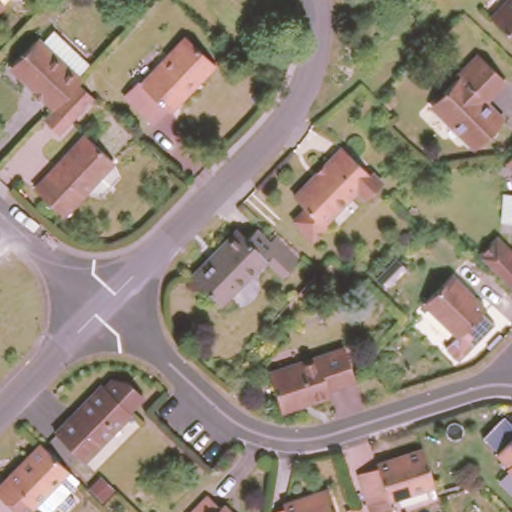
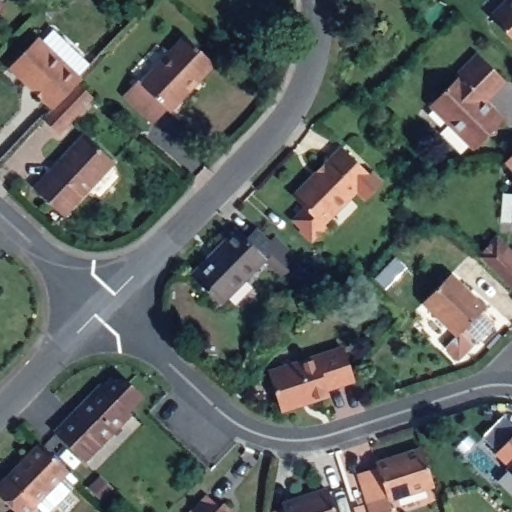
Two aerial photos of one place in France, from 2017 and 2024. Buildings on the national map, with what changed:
unchanged [(7,3),(0,9),(0,0),(4,0),(7,3)]
unchanged [(502,0),(512,0),(512,38),(488,15),(502,0)]
unchanged [(53,108),(9,66),(35,39),(40,43),(48,34),(46,32),(50,28),(53,28),(58,34),(57,36),(77,56),(87,66),(75,77),(79,81),(77,83),(53,108)]
unchanged [(136,75),(140,80),(186,31),(212,57),(166,106),(165,104),(152,118),(123,90),(136,75)]
unchanged [(445,93),(443,91),(457,77),(455,75),(476,53),(502,79),(480,103),(500,121),(475,147),(450,122),(452,120),(435,105),(445,93)]
unchanged [(57,133),(42,120),(53,108),(77,83),(92,97),(57,133)]
unchanged [(85,131),(112,156),(60,209),(35,185),(85,131)]
unchanged [(304,204),(293,194),(308,179),(307,177),(325,159),(327,161),(343,144),(368,169),(371,167),(382,178),(365,196),(354,185),(322,218),(326,222),(311,237),(300,226),(301,224),(292,216),(304,204)]
unchanged [(508,155),(512,151),(512,162),(507,157),(508,155)]
unchanged [(282,276),(262,257),(218,303),(192,277),(207,261),(205,259),(221,242),(223,244),(237,231),(245,239),(256,228),(270,241),(275,236),(299,259),(282,276)]
unchanged [(512,248),(512,283),(478,250),(495,232),(512,248)]
unchanged [(460,334),(458,336),(423,303),(448,277),(483,310),(482,312),(495,324),(473,346),(460,334)]
unchanged [(353,382),(325,387),(326,393),(277,401),(270,363),(348,351),(353,382)]
unchanged [(105,432),(107,434),(85,457),(55,426),(75,406),(76,408),(103,381),(129,407),(105,432)]
unchanged [(512,432),(512,459),(498,447),(512,432)]
unchanged [(75,496),(65,507),(57,500),(47,511),(34,499),(33,500),(30,497),(18,510),(0,491),(0,486),(10,477),(8,475),(42,440),(67,465),(79,477),(67,489),(75,496)]
unchanged [(433,480),(408,489),(407,486),(387,493),(377,464),(415,452),(414,450),(423,445),(433,480)]
unchanged [(512,459),(512,463),(510,461),(512,459)]
unchanged [(283,506),(329,491),(336,512),(270,512),(285,507),(283,506)]
unchanged [(221,502),(232,512),(186,512),(207,492),(218,504),(221,502)]
unchanged [(386,512),(371,512),(367,501),(374,499),(382,497),(386,512)]

